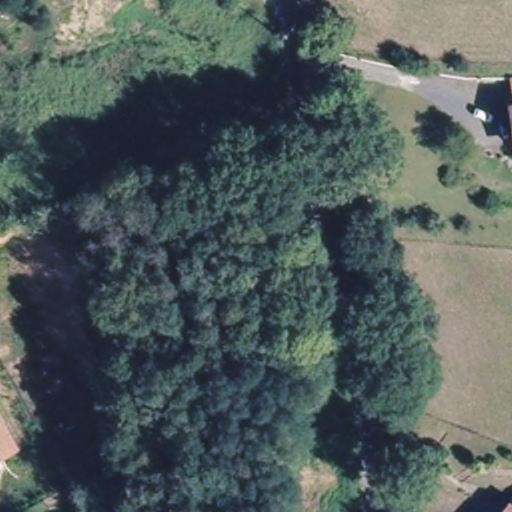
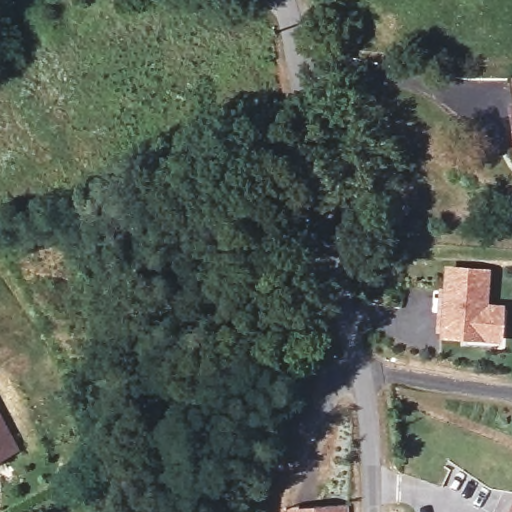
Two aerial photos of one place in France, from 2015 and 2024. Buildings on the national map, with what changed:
new [(445,265),(491,270),(488,304),(504,305),(502,342),(485,340),(485,343),(438,338),(445,265)]
unchanged [(7,394),(32,442),(0,458),(0,398),(7,394)]
unchanged [(512,502),(512,511),(508,508),(512,502)]
new [(284,506),(348,505),(348,512),(283,512),(284,506)]
unchanged [(508,508),(512,511),(512,512),(504,512),(508,508)]

